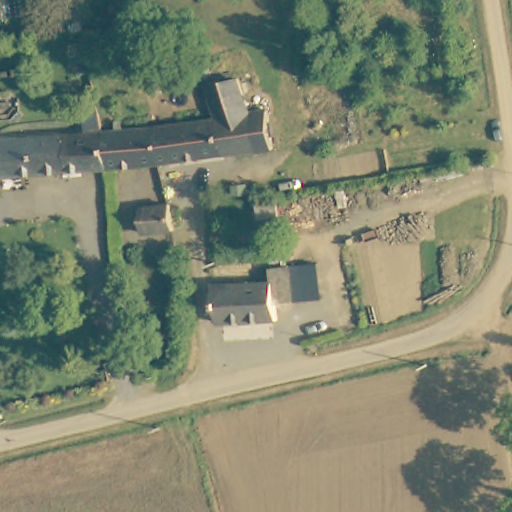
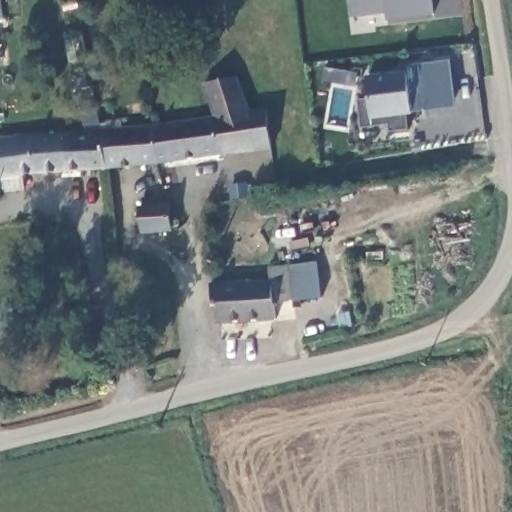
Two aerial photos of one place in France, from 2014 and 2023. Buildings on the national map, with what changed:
unchanged [(2,0),(5,22),(0,23),(0,0),(2,0)]
new [(355,16),(353,0),(433,0),(435,15),(390,20),(387,12),(355,16)]
unchanged [(2,56),(0,56),(0,43),(2,56)]
new [(414,114),(407,115),(410,129),(391,131),(390,125),(363,126),(360,100),(370,99),(367,76),(406,71),(406,65),(451,61),(456,106),(414,114)]
unchanged [(220,119),(211,85),(244,79),(255,115),(273,113),(278,150),(116,166),(110,130),(220,119)]
unchanged [(1,140),(85,132),(110,130),(116,166),(6,177),(2,147),(1,140)]
unchanged [(129,215),(127,200),(158,197),(160,212),(164,211),(165,235),(114,242),(111,216),(115,216),(129,215)]
unchanged [(273,282),(273,267),(276,267),(296,267),(296,302),(276,302),(276,320),(214,320),(210,282),(273,282)]
unchanged [(326,267),(326,302),(296,302),(296,267),(326,267)]

